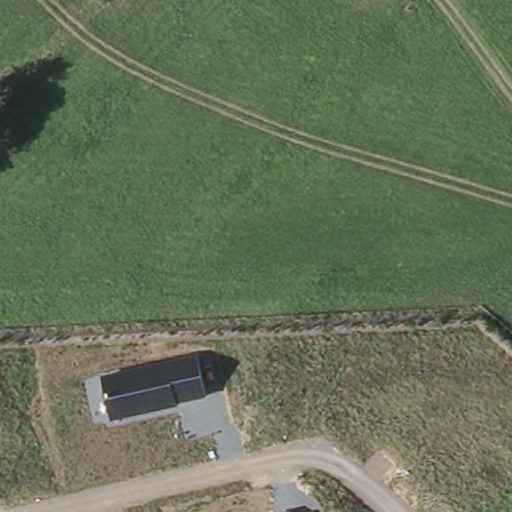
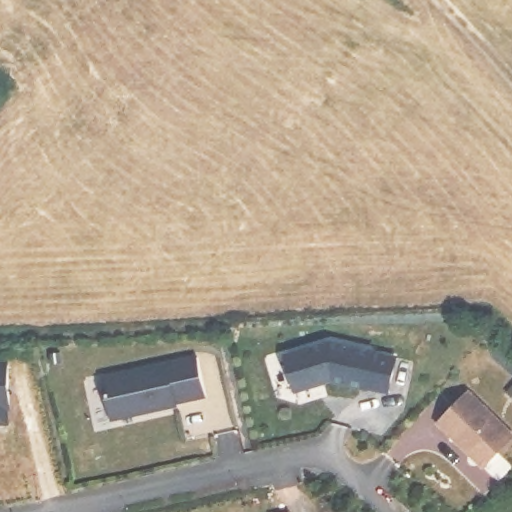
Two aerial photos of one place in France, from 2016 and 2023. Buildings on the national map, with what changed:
new [(298,394),(287,357),(332,344),(378,355),(378,356),(398,361),(391,396),(370,391),(370,392),(334,383),(320,387),(298,394)]
unchanged [(196,356),(207,396),(111,420),(102,377),(196,356)]
new [(7,364),(7,386),(8,392),(9,409),(6,409),(7,424),(0,424),(0,364),(7,364)]
new [(512,437),(512,446),(487,472),(441,427),(471,396),(512,437)]

